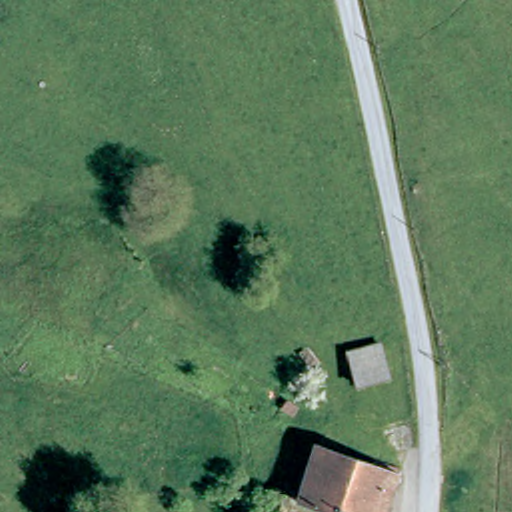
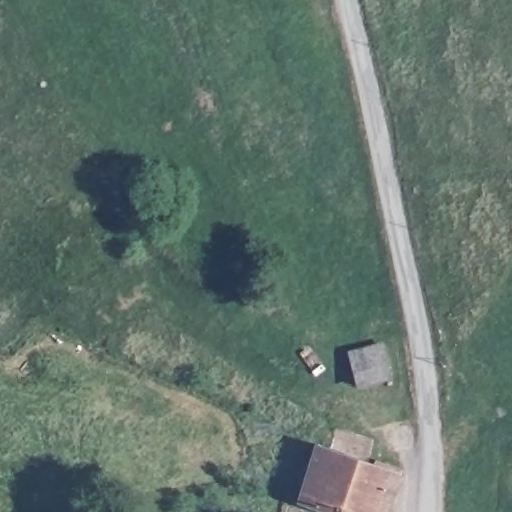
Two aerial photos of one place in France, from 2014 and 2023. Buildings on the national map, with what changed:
unchanged [(385,349),(394,382),(362,388),(354,356),(385,349)]
unchanged [(318,512),(300,506),(303,495),(295,491),(302,467),(304,468),(312,470),(320,448),(374,467),(377,462),(403,471),(400,478),(389,512),(318,512)]

